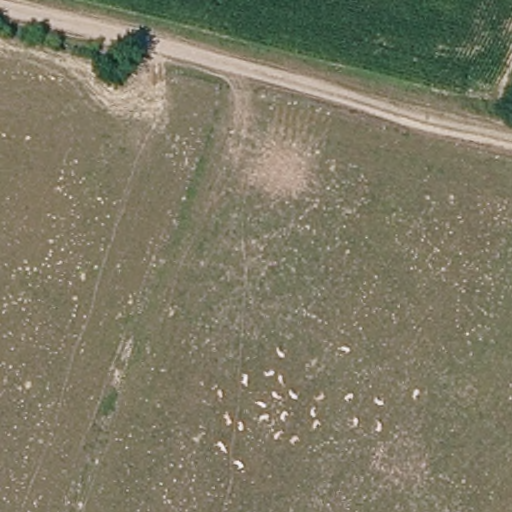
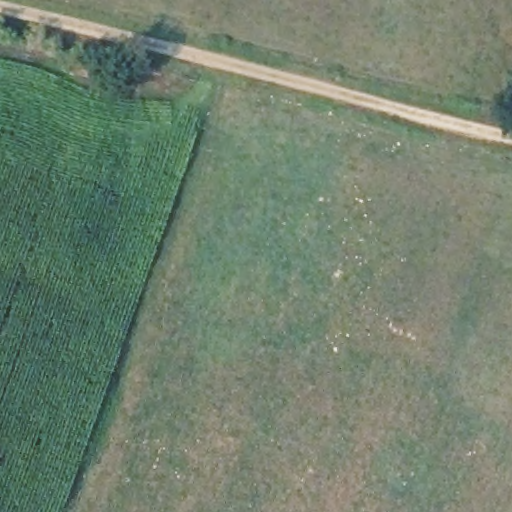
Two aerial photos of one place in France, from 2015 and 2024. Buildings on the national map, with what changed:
[]

